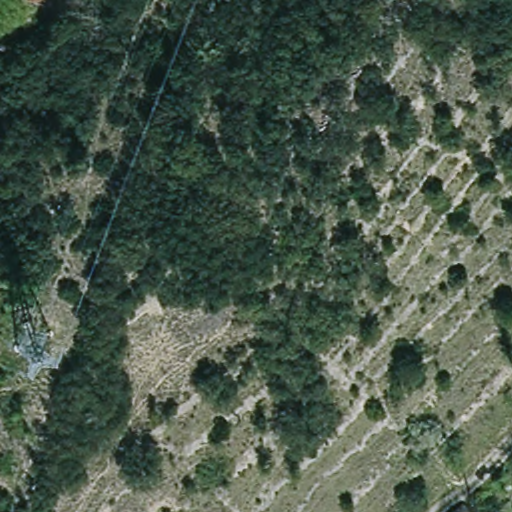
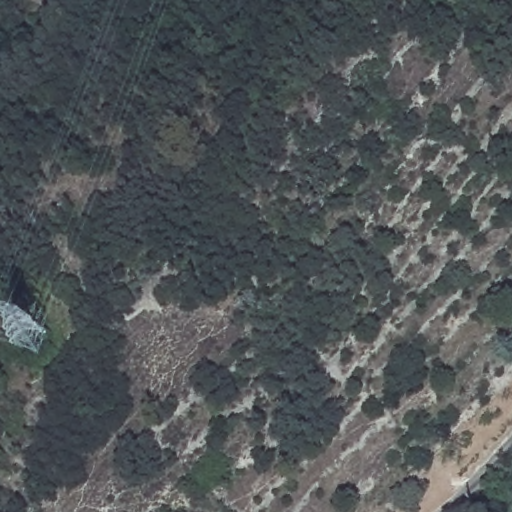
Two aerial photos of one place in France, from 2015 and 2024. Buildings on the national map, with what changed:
unchanged [(459,504),(465,512),(450,512),(459,504)]

